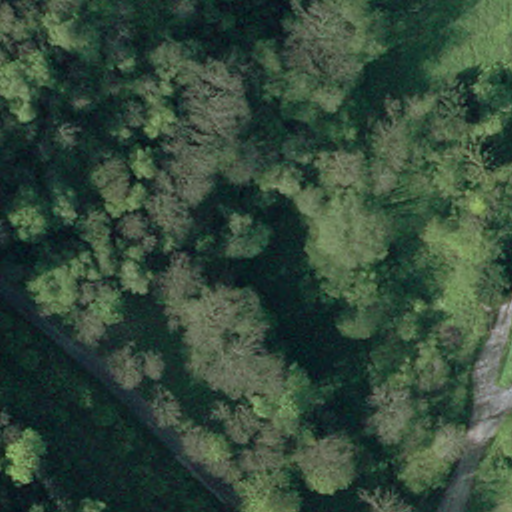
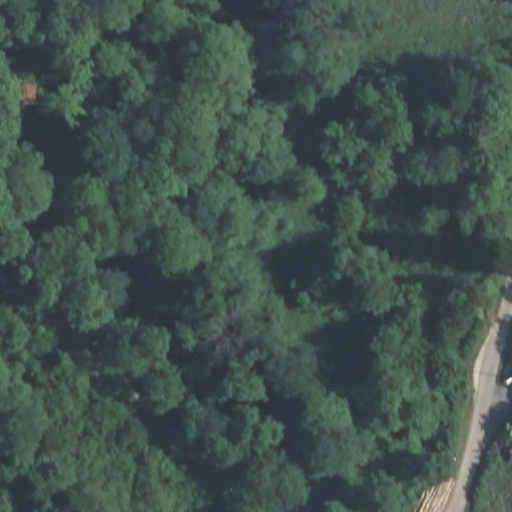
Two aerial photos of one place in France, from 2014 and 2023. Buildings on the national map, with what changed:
[]

